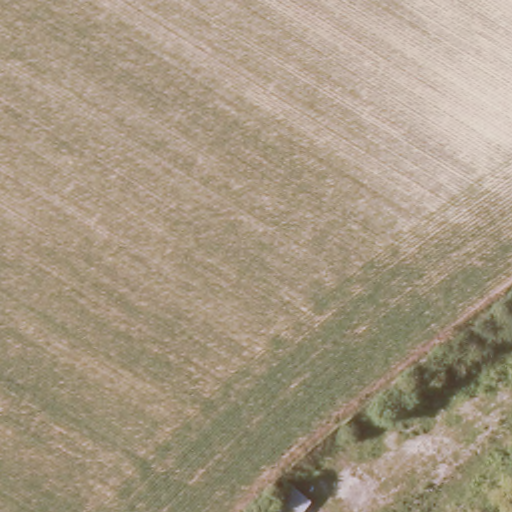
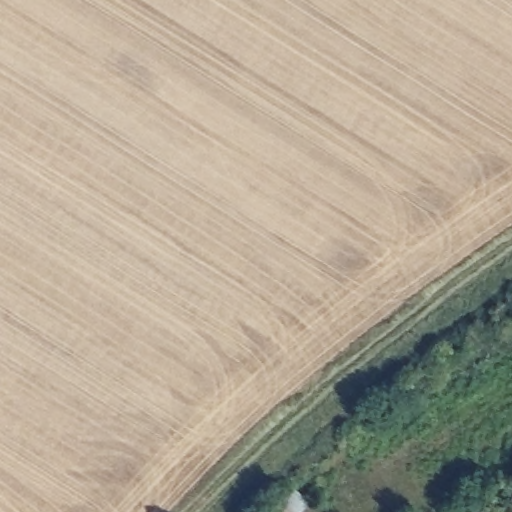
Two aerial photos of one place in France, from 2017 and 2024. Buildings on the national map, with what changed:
unchanged [(311,503),(305,512),(269,512),(284,487),(311,503)]

